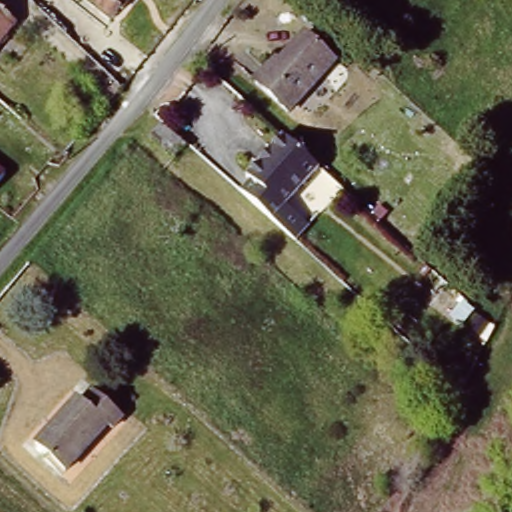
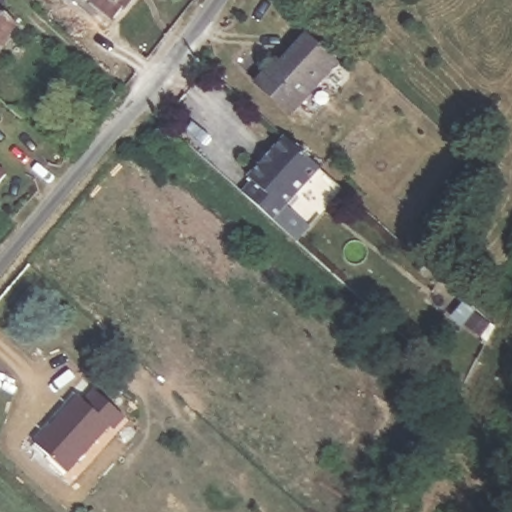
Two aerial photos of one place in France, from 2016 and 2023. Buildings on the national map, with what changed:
unchanged [(88,0),(127,0),(111,20),(88,0)]
unchanged [(168,0),(186,0),(179,9),(168,0)]
unchanged [(0,48),(0,1),(22,21),(0,48)]
unchanged [(95,30),(83,43),(66,29),(78,16),(95,30)]
unchanged [(337,64),(290,118),(256,87),(274,67),(280,72),(308,38),(337,64)]
unchanged [(172,160),(151,141),(160,131),(182,150),(188,156),(178,165),(172,160)]
unchanged [(323,163),(290,200),(311,219),(298,232),(250,182),(288,132),(323,163)]
unchanged [(0,177),(0,171),(3,173),(0,177)]
unchanged [(123,417),(113,429),(108,425),(65,471),(35,445),(78,399),(81,402),(92,390),(123,417)]

